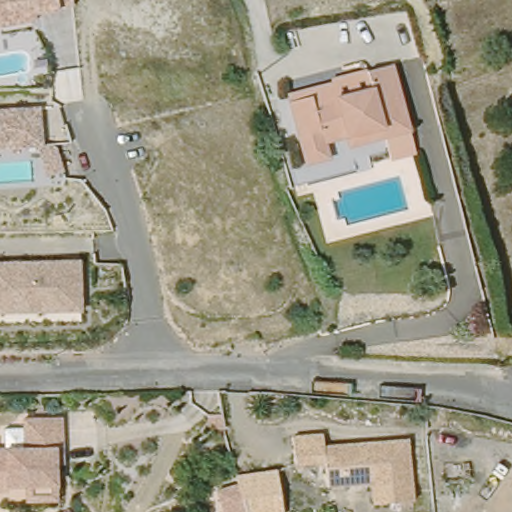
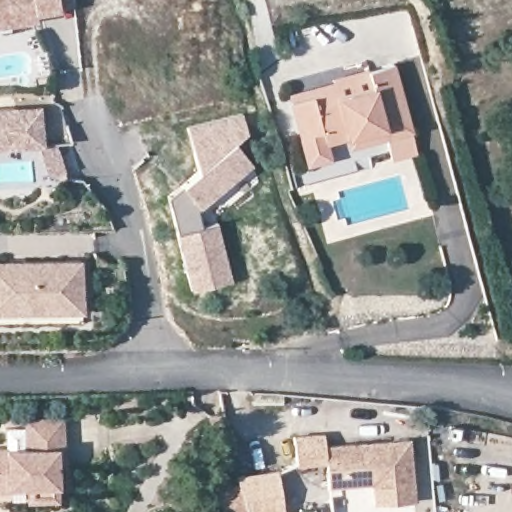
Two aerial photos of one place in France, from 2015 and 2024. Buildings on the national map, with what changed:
unchanged [(75,4),(58,7),(58,10),(35,15),(35,22),(0,28),(0,0),(75,0),(75,4)]
unchanged [(305,164),(298,131),(291,105),(316,98),(317,105),(376,94),(375,83),(400,78),(410,142),(385,147),(382,136),(325,149),(327,158),(305,164)]
unchanged [(42,107),(45,144),(55,143),(65,174),(45,177),(37,146),(0,150),(0,110),(42,107)]
new [(189,287),(177,230),(169,195),(183,185),(199,172),(188,126),(243,116),(248,134),(235,144),(252,165),(197,209),(201,227),(218,224),(230,280),(189,287)]
unchanged [(82,310),(0,314),(0,263),(80,260),(82,310)]
unchanged [(27,503),(26,488),(7,490),(7,494),(0,494),(0,453),(23,451),(21,422),(59,420),(61,450),(62,465),(55,465),(56,486),(57,501),(27,503)]
unchanged [(374,505),(372,485),(328,490),(325,465),(296,467),(293,440),(323,437),(324,450),(407,441),(413,501),(374,505)]
unchanged [(236,483),(234,475),(278,469),(284,512),(222,512),(215,490),(236,483)]

